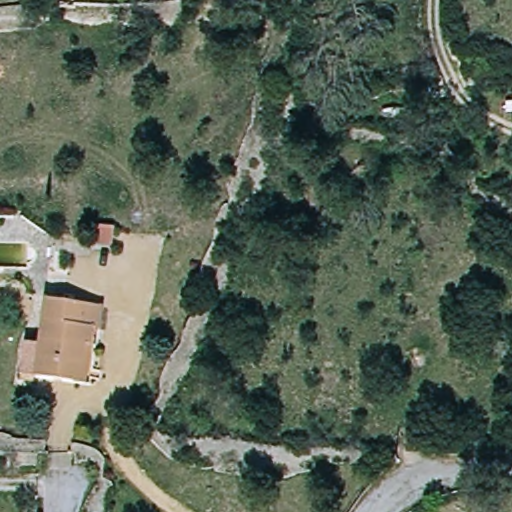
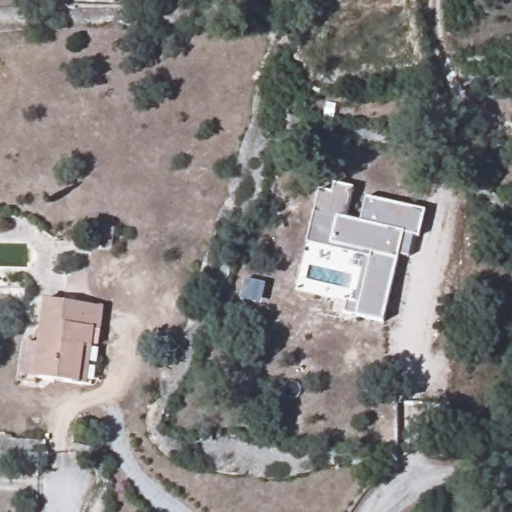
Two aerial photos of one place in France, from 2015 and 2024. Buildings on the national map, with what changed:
new [(321,180),(352,187),(345,218),(358,221),(364,196),(425,211),(418,237),(412,237),(407,257),(398,256),(383,323),(342,313),(346,299),(353,301),(363,257),(306,242),(321,180)]
unchanged [(118,230),(118,249),(95,247),(95,230),(118,230)]
unchanged [(79,385),(31,378),(18,377),(22,344),(36,346),(42,298),(103,307),(100,328),(94,328),(91,347),(86,386),(79,385)]

